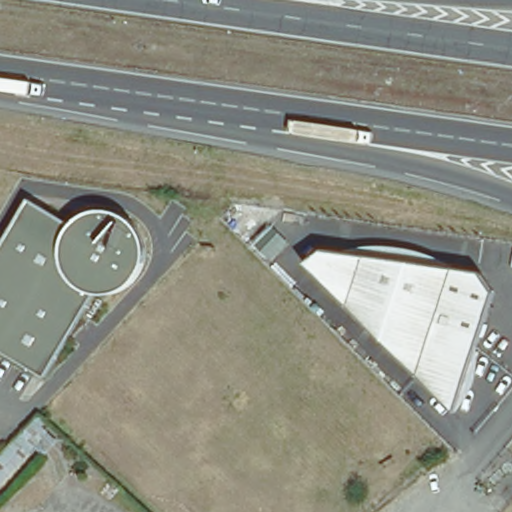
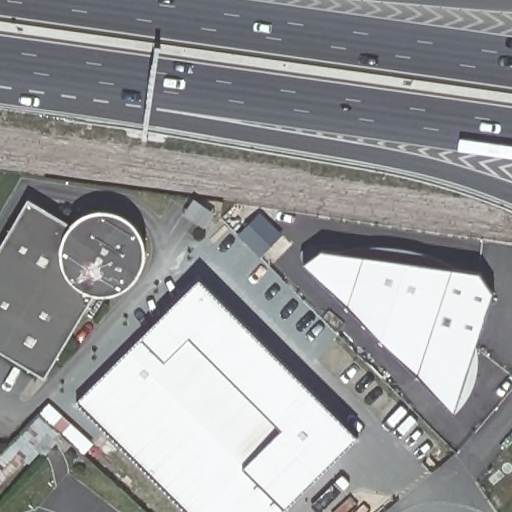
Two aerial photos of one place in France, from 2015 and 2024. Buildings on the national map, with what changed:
unchanged [(110,293),(105,294),(101,294),(99,294),(95,294),(94,293),(45,377),(0,351),(0,245),(26,199),(70,224),(71,223),(73,221),(75,219),(78,217),(81,215),(85,213),(89,212),(94,211),(100,210),(104,210),(107,210),(111,211),(116,212),(120,214),(124,216),(129,220),(132,223),(134,225),(136,228),(138,231),(140,235),(142,239),(143,243),(144,248),(144,252),(144,257),(143,261),(141,265),(140,270),(138,274),(134,279),(131,283),(126,286),(121,289),(115,292),(110,293)]
unchanged [(304,258),(321,239),(485,263),(499,282),(460,403),(304,258)]
new [(358,437),(285,509),(283,512),(186,512),(77,403),(121,358),(142,338),(200,279),(358,437)]
new [(94,444),(85,454),(74,444),(66,453),(56,444),(46,456),(40,452),(30,464),(24,458),(29,453),(15,440),(50,402),(94,444)]
unchanged [(0,483),(0,452),(13,438),(29,453),(0,483)]

